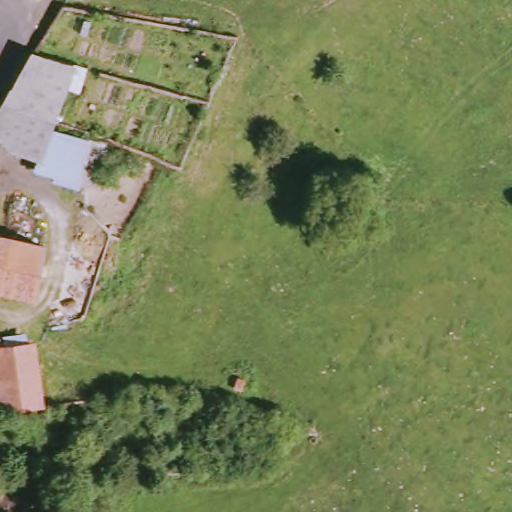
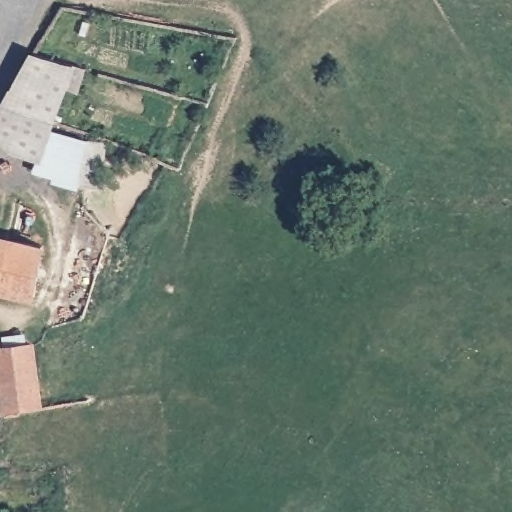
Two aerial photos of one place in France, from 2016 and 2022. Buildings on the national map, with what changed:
unchanged [(89,139),(113,145),(106,192),(85,183),(83,193),(35,170),(38,161),(0,138),(0,119),(8,101),(38,54),(80,66),(59,129),(89,139)]
unchanged [(38,295),(0,288),(0,235),(47,244),(38,295)]
unchanged [(0,371),(0,349),(13,347),(36,345),(46,407),(6,413),(1,378),(0,371)]

